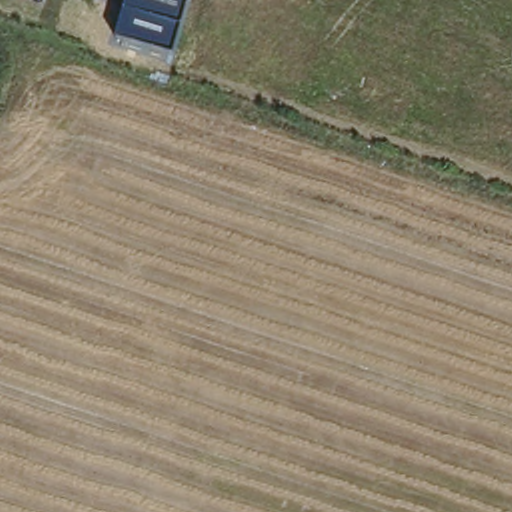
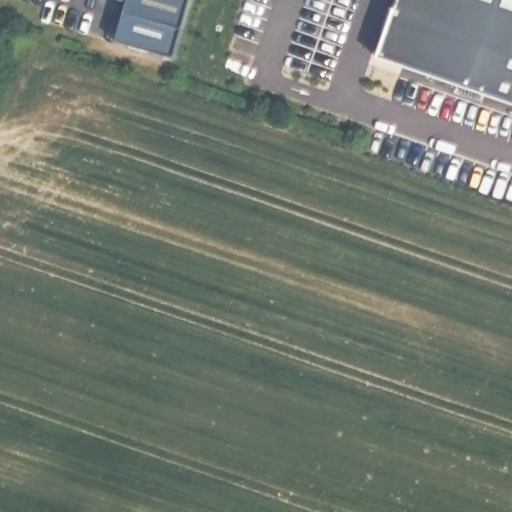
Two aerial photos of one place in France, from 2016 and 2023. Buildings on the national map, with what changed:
unchanged [(118,39),(129,0),(189,0),(173,54),(118,39)]
new [(512,117),(368,70),(391,0),(512,0),(512,117)]

